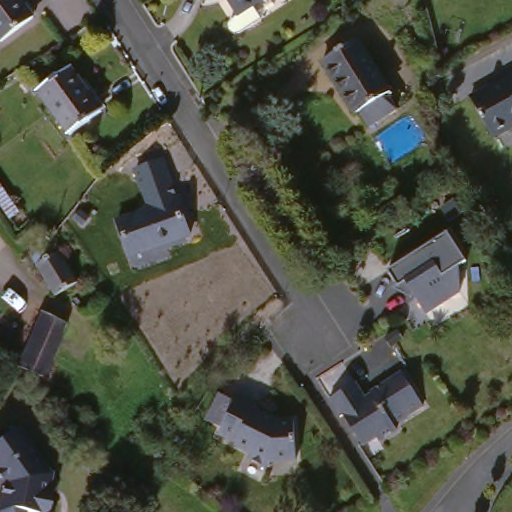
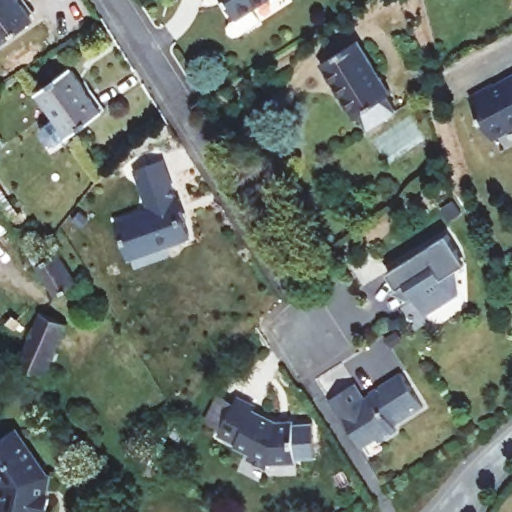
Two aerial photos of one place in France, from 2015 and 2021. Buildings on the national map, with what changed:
unchanged [(0,38),(0,0),(20,0),(34,19),(4,42),(0,38)]
unchanged [(239,14),(230,0),(268,0),(257,7),(264,20),(245,34),(230,37),(227,29),(233,19),(239,14)]
unchanged [(363,113),(356,116),(339,88),(322,64),(361,40),(396,92),(392,95),(401,109),(372,127),(363,113)]
unchanged [(69,133),(42,94),(74,73),(102,109),(69,133)]
unchanged [(489,135),(469,97),(485,89),(486,92),(512,80),(512,123),(489,135)]
unchanged [(131,257),(116,220),(147,208),(134,171),(164,160),(191,235),(131,257)]
unchanged [(0,199),(0,179),(22,211),(13,218),(0,199)]
unchanged [(464,251),(466,293),(433,315),(419,293),(423,290),(417,282),(406,289),(394,273),(454,234),(464,251)]
unchanged [(63,305),(36,267),(51,257),(59,264),(65,260),(84,291),(63,305)]
unchanged [(20,366),(43,311),(69,323),(44,378),(20,366)]
unchanged [(356,385),(368,401),(374,397),(371,393),(401,373),(424,406),(395,425),(398,430),(381,442),(378,438),(364,447),(344,418),(341,420),(330,402),(356,385)]
unchanged [(254,461),(258,454),(243,446),(243,445),(226,436),(245,398),(264,407),(261,413),(279,422),(279,421),(284,423),(302,422),(304,463),(277,464),(274,471),(254,461)]
unchanged [(49,494),(52,500),(49,512),(23,512),(0,512),(0,502),(1,496),(0,496),(0,490),(2,482),(0,479),(0,441),(23,428),(51,477),(49,494)]

